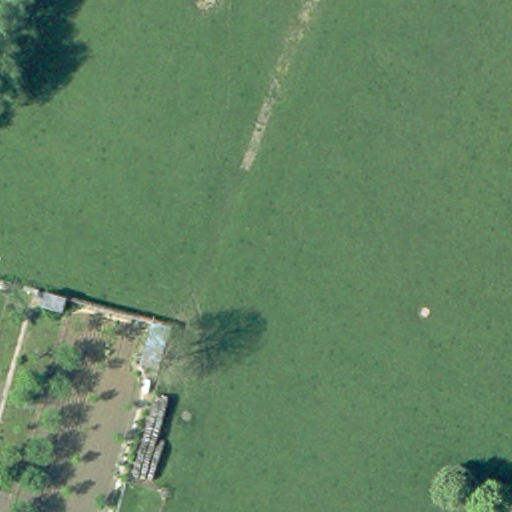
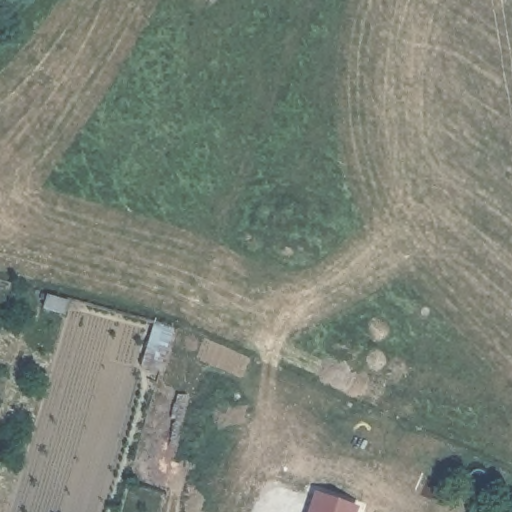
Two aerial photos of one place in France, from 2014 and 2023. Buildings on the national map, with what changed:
unchanged [(44,308),(46,300),(34,297),(36,287),(42,289),(49,291),(68,296),(63,314),(44,308)]
new [(354,512),(304,512),(311,491),(357,505),(354,512)]

